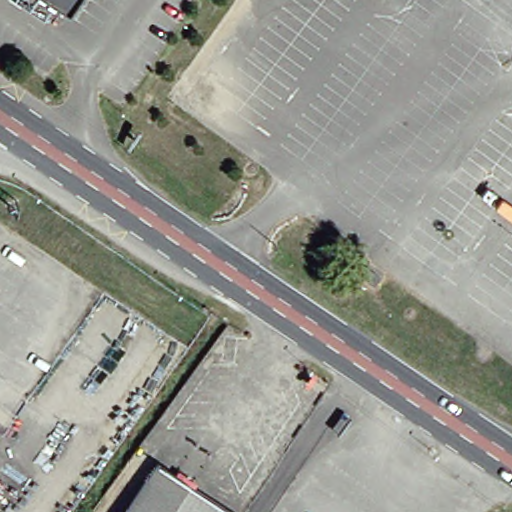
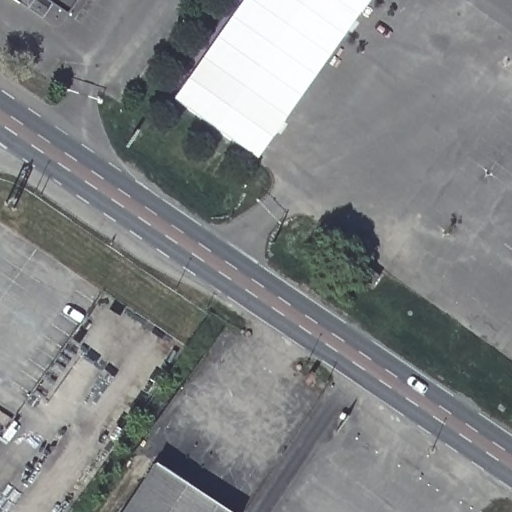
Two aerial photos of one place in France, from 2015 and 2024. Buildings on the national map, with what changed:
unchanged [(77,0),(68,14),(47,0),(77,0)]
new [(175,99),(244,0),(369,0),(258,158),(175,99)]
unchanged [(165,457),(244,512),(127,512),(165,457)]

